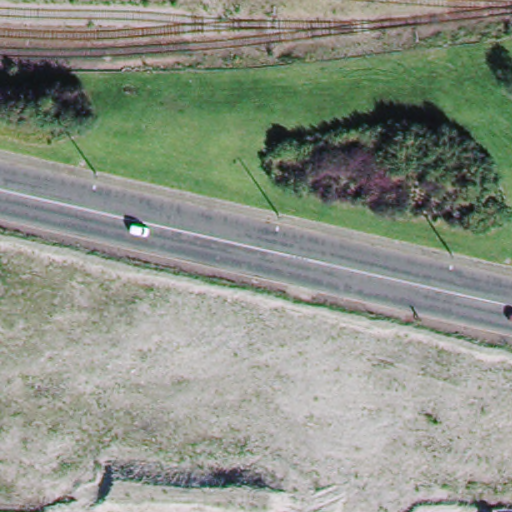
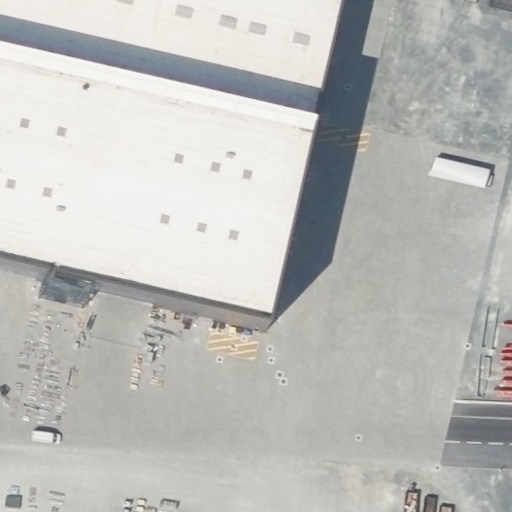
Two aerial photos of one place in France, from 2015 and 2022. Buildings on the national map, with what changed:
new [(262,345),(0,286),(0,0),(329,0),(262,345)]

